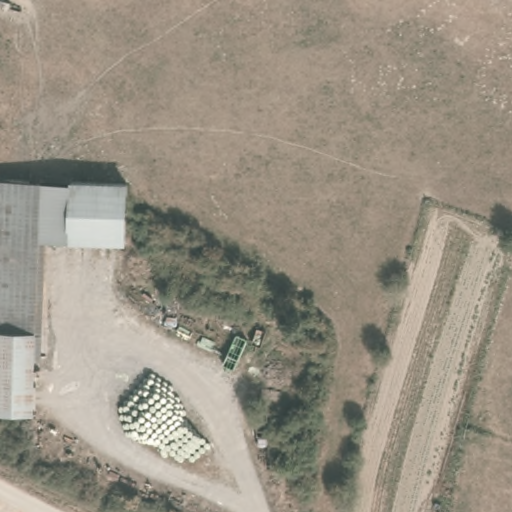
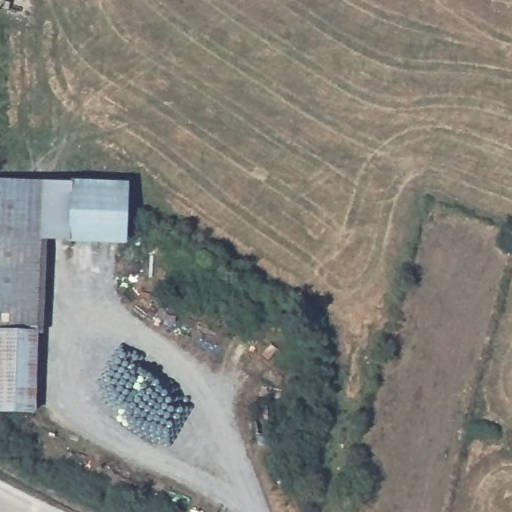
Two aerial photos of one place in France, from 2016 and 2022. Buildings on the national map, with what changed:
unchanged [(44,184),(41,241),(34,412),(0,411),(0,182),(44,184)]
unchanged [(76,185),(73,244),(41,241),(44,184),(76,185)]
unchanged [(127,246),(73,244),(76,185),(128,185),(127,246)]

